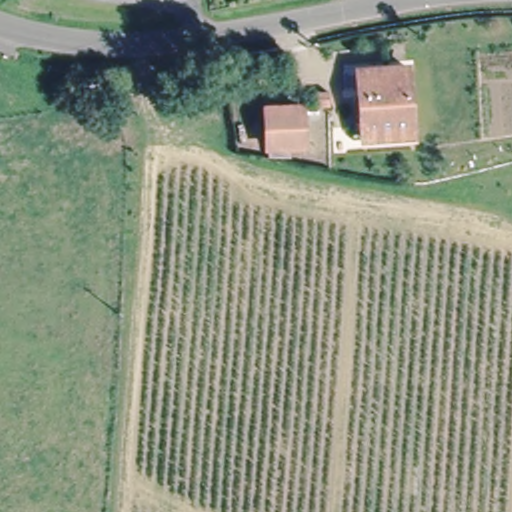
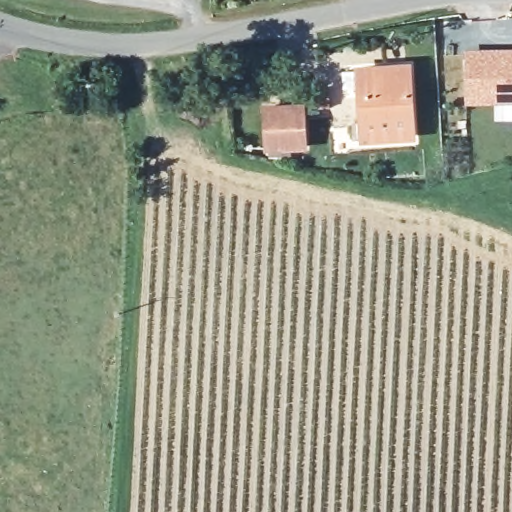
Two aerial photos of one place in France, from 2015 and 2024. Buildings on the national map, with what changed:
new [(469,49),(512,48),(512,95),(469,95),(469,49)]
unchanged [(363,130),(360,81),(344,81),(343,62),(407,58),(412,127),(363,130)]
unchanged [(269,149),(268,108),(303,107),(304,148),(269,149)]

